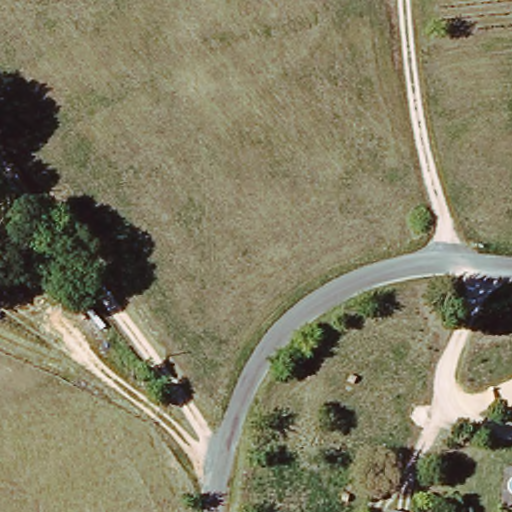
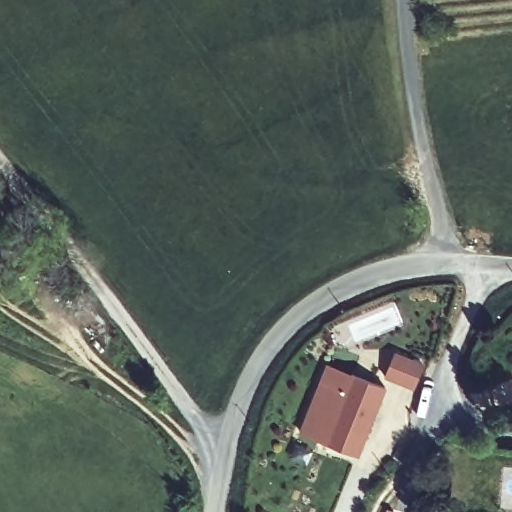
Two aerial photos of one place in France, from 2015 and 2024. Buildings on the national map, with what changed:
new [(413,387),(397,382),(384,376),(394,353),(406,357),(422,363),(413,387)]
new [(387,389),(359,459),(299,432),(327,363),(387,389)]

